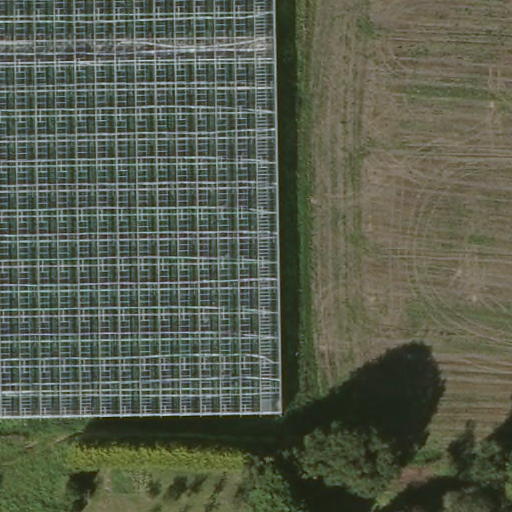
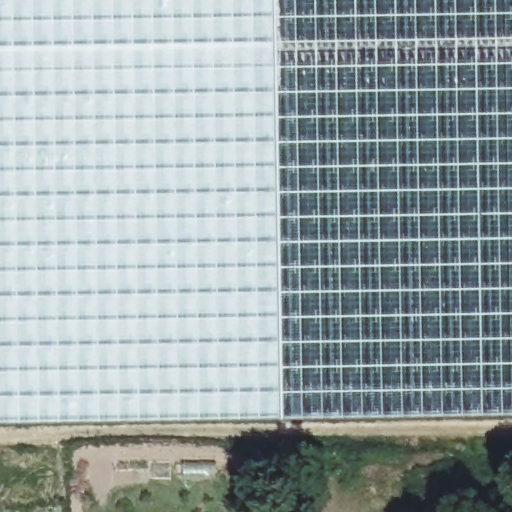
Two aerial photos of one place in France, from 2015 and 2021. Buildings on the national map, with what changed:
unchanged [(271,421),(0,425),(0,0),(267,0),(271,421)]
new [(267,0),(512,0),(512,415),(271,421),(267,0)]

